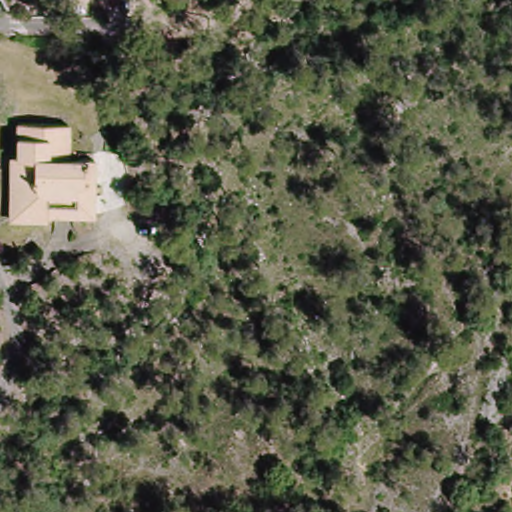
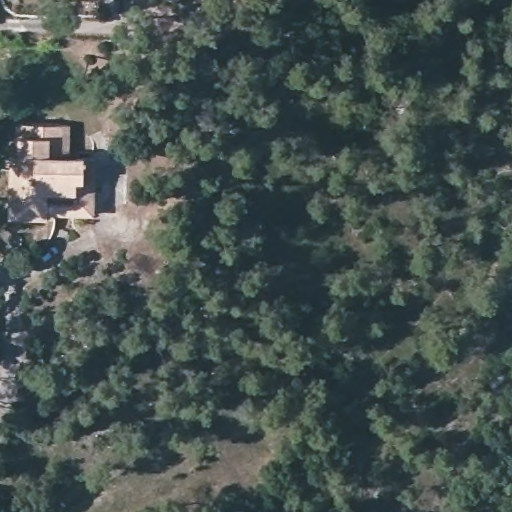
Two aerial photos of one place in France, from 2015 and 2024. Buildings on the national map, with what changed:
unchanged [(93,215),(75,215),(75,202),(26,201),(26,158),(17,158),(17,123),(69,124),(69,158),(94,158),(93,215)]
unchanged [(75,215),(47,214),(47,219),(8,219),(9,158),(17,158),(26,158),(26,201),(75,202),(75,215)]

